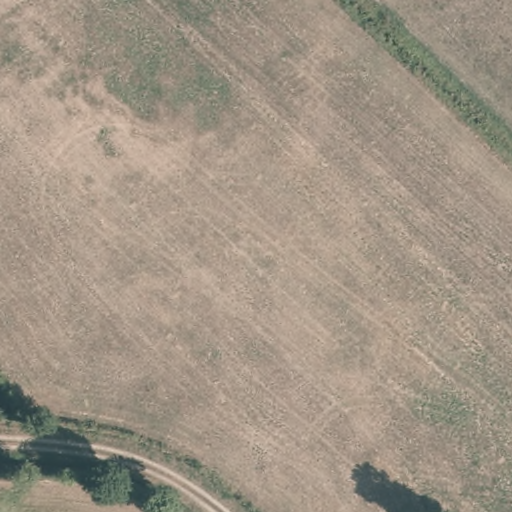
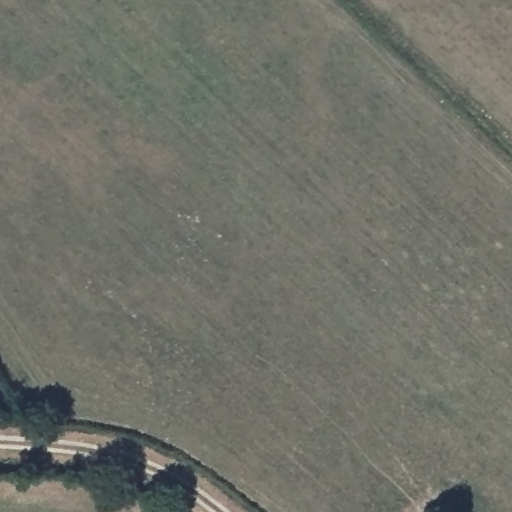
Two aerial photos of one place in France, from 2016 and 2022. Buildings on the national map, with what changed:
[]

